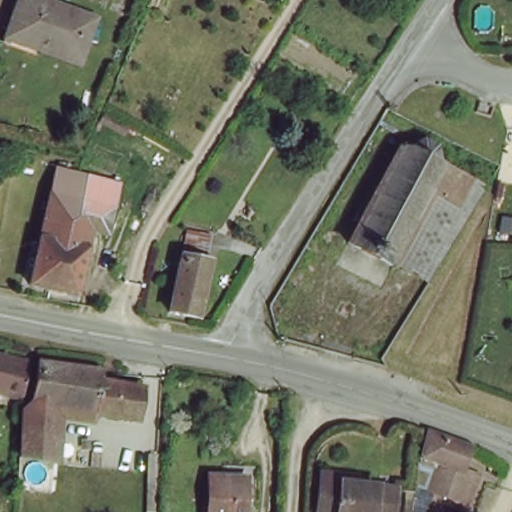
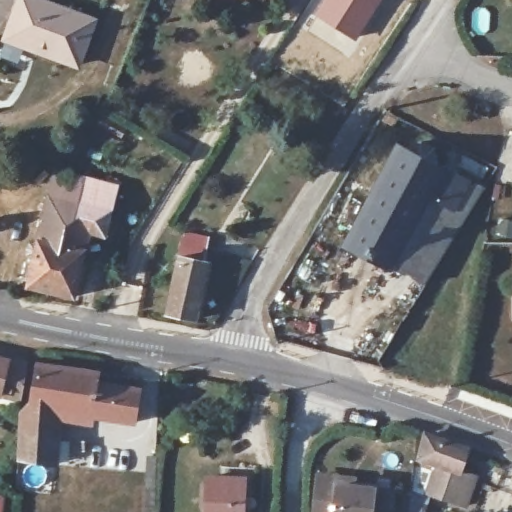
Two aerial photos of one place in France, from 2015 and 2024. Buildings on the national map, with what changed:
unchanged [(9,34),(21,0),(24,0),(91,23),(76,65),(35,52),(6,43),(9,34)]
new [(322,0),(382,0),(357,40),(312,15),(322,0)]
unchanged [(346,251),(400,151),(415,159),(418,153),(437,162),(434,168),(469,187),(455,213),(429,200),(388,273),(346,251)]
unchanged [(32,295),(47,176),(83,181),(73,235),(58,233),(44,296),(32,295)]
unchanged [(58,233),(73,235),(83,181),(112,185),(103,240),(87,238),(76,300),(44,296),(58,233)]
unchanged [(429,200),(455,213),(469,187),(479,193),(425,292),(388,273),(429,200)]
unchanged [(205,263),(211,264),(201,317),(172,312),(186,238),(210,243),(205,263)]
unchanged [(15,367),(14,406),(0,403),(0,362),(15,367)]
unchanged [(93,386),(137,390),(135,422),(55,417),(51,469),(23,467),(24,421),(31,422),(32,375),(48,376),(93,377),(93,386)]
unchanged [(465,462),(461,483),(467,484),(460,511),(428,503),(435,476),(421,473),(426,453),(465,462)]
unchanged [(320,512),(323,479),(324,470),(357,474),(356,483),(396,486),(394,512),(320,512)]
unchanged [(242,512),(205,512),(207,477),(244,479),(242,512)]
new [(3,512),(0,512),(0,497),(5,497),(3,512)]

